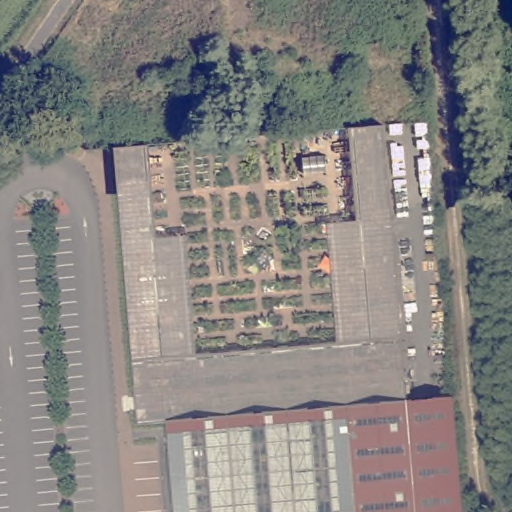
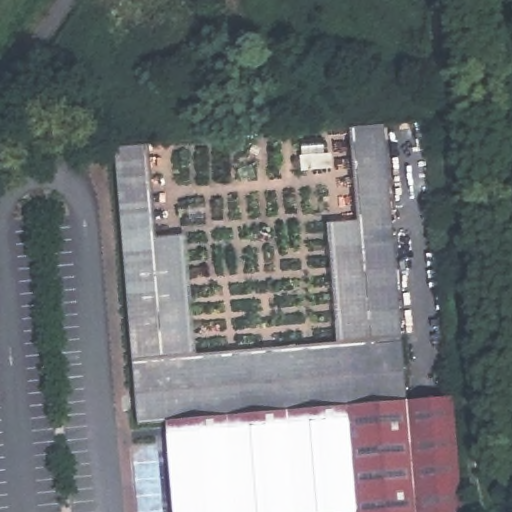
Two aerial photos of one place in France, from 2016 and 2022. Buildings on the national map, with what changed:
unchanged [(140,424),(132,326),(118,148),(152,145),(160,238),(166,237),(190,235),(200,355),(340,343),(330,224),(360,221),(352,128),(387,126),(410,402),(170,422),(140,424)]
unchanged [(455,399),(464,512),(419,512),(410,402),(455,399)]
unchanged [(410,402),(419,512),(177,512),(170,422),(410,402)]

